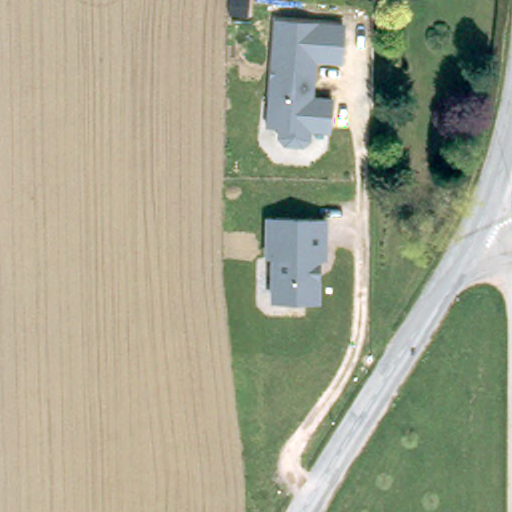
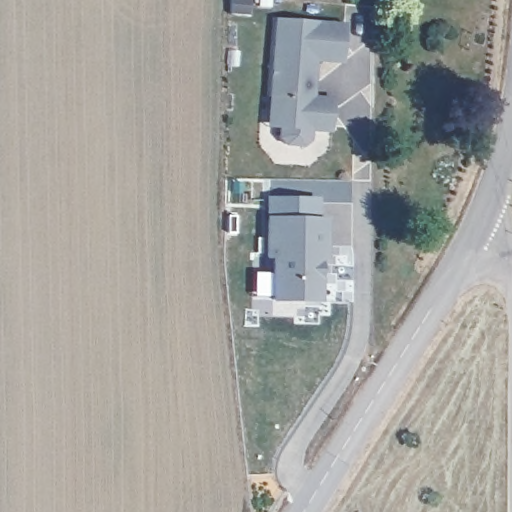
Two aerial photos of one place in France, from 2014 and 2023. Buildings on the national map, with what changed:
unchanged [(341,61),(316,61),(313,94),(332,95),(331,132),(311,132),(312,139),(302,146),(281,144),(277,137),(277,126),(267,126),(272,18),(342,22),(341,61)]
unchanged [(326,255),(317,264),(319,302),(271,302),(271,258),(264,254),(263,218),(327,218),(326,255)]

